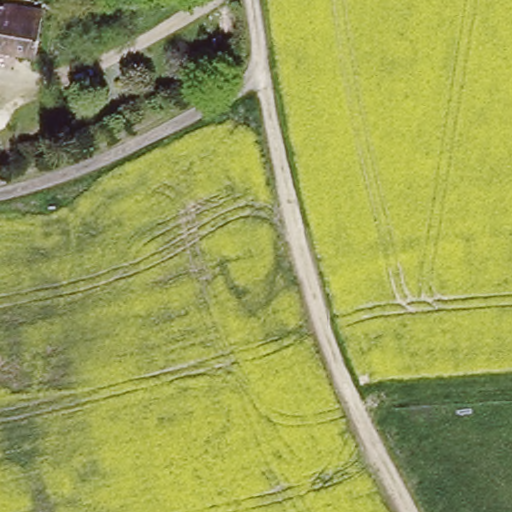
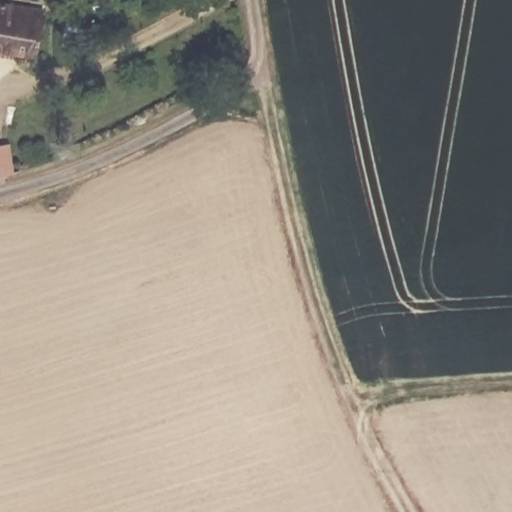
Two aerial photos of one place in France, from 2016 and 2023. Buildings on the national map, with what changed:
unchanged [(0,55),(0,8),(39,14),(49,15),(49,24),(63,25),(64,19),(84,22),(80,66),(0,55)]

